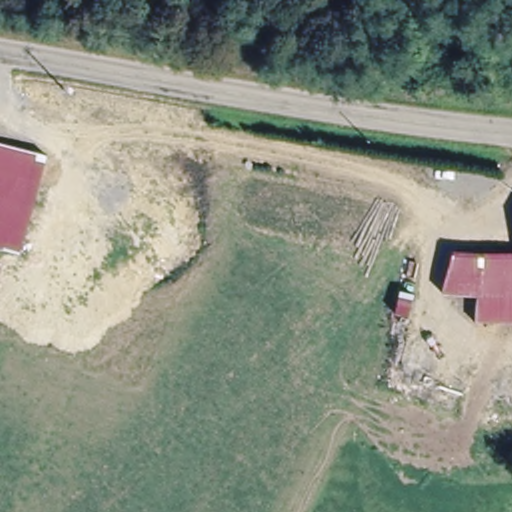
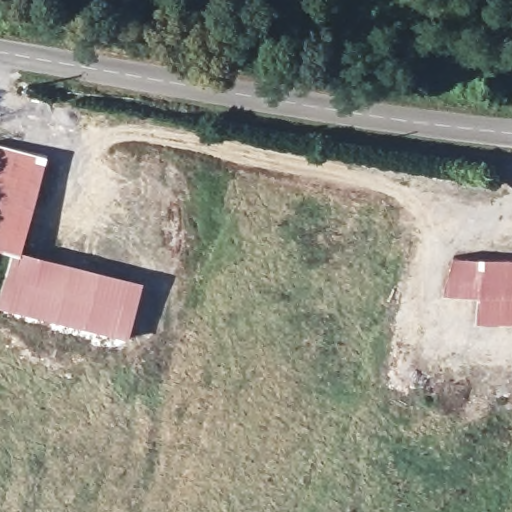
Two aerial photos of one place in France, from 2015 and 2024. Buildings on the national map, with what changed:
unchanged [(51,158),(25,255),(0,248),(0,145),(51,158)]
new [(132,339),(0,306),(17,253),(25,255),(26,251),(146,282),(132,339)]
unchanged [(512,255),(512,325),(479,325),(481,298),(443,296),(456,254),(512,255)]

